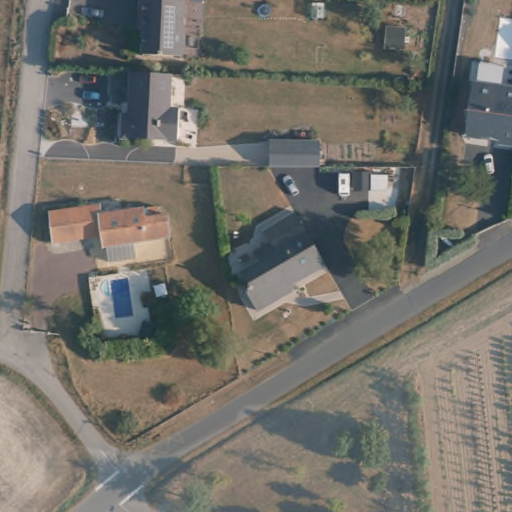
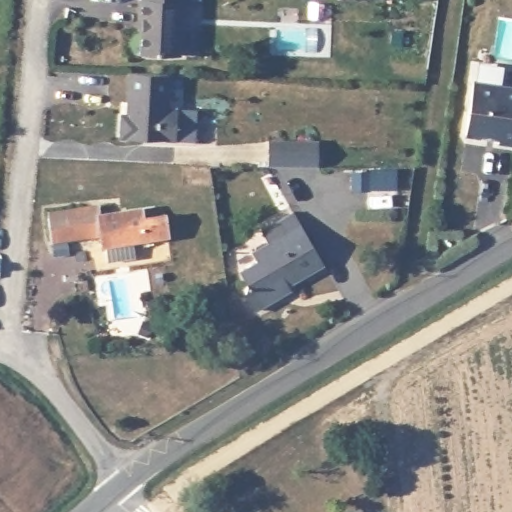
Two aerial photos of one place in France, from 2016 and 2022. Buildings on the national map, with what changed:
unchanged [(136,52),(137,24),(134,24),(135,5),(138,5),(139,0),(178,0),(175,54),(136,52)]
unchanged [(389,25),(405,26),(403,45),(387,43),(389,25)]
unchanged [(156,76),(161,76),(159,110),(169,110),(167,142),(135,140),(112,139),(113,127),(113,116),(121,116),(122,104),(120,104),(121,74),(156,76)]
unchanged [(504,144),(505,135),(492,132),(490,132),(489,136),(467,132),(476,77),(512,83),(512,144),(504,144)]
unchanged [(267,141),(317,140),(317,165),(317,166),(306,166),(267,166),(267,141)]
unchanged [(99,205),(100,214),(154,201),(156,209),(98,217),(102,234),(53,243),(51,234),(48,215),(52,214),(99,205)]
unchanged [(170,231),(167,232),(136,239),(139,254),(113,260),(108,245),(104,246),(102,234),(98,217),(156,209),(165,208),(170,231)]
unchanged [(245,296),(247,281),(244,275),(261,265),(256,256),(272,247),(265,234),(296,215),(306,230),(328,267),(285,293),(284,301),(258,316),(245,296)]

